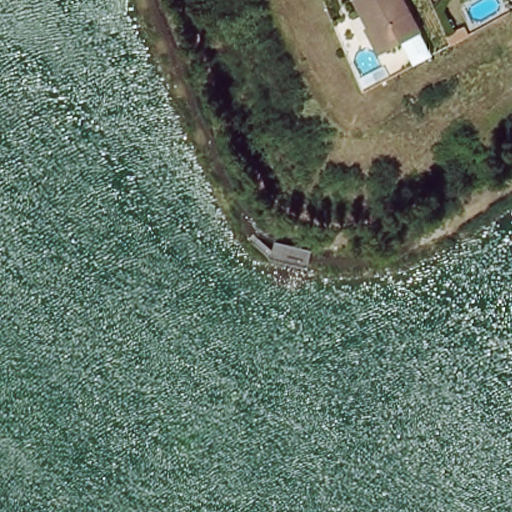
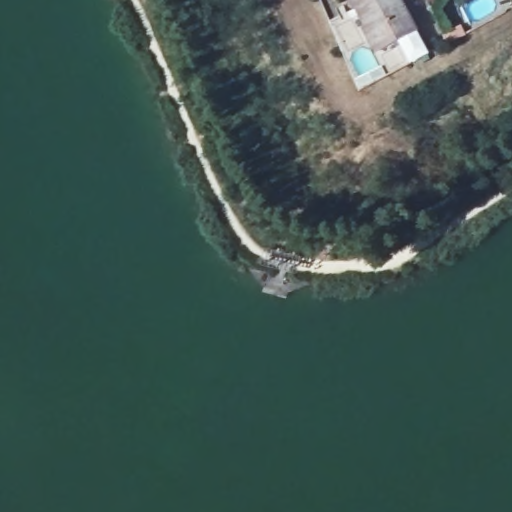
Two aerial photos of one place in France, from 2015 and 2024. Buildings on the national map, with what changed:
unchanged [(422,34),(384,53),(359,0),(405,0),(422,34)]

